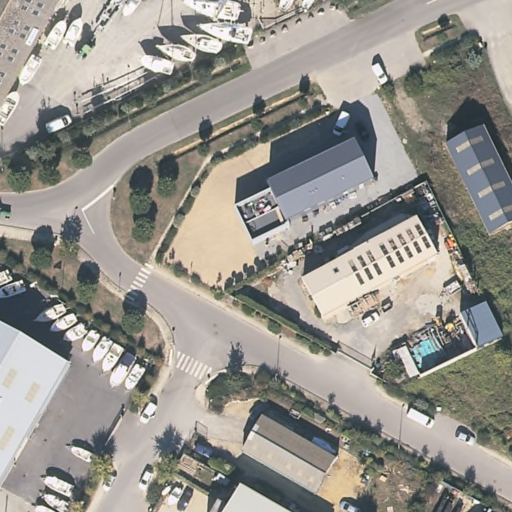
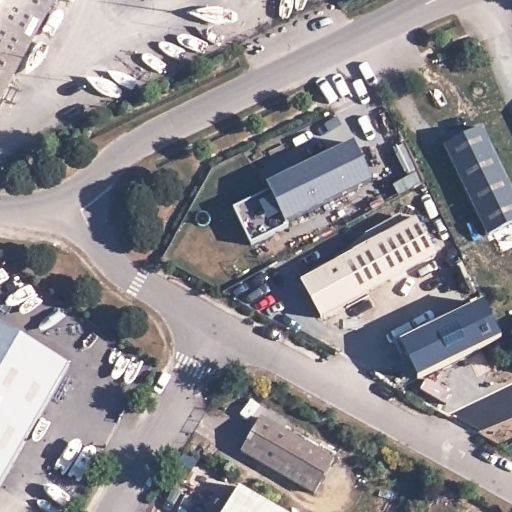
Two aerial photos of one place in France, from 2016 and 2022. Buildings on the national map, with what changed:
unchanged [(0,0),(54,0),(0,98),(0,0)]
unchanged [(480,126),(512,196),(512,222),(486,234),(444,143),(480,126)]
unchanged [(374,182),(287,223),(289,227),(252,244),(235,209),(272,193),(267,184),(353,143),(374,182)]
unchanged [(305,286),(418,225),(436,257),(323,319),(305,286)]
new [(486,300),(502,335),(422,374),(405,340),(486,300)]
unchanged [(0,491),(0,328),(67,369),(0,491)]
unchanged [(262,418),(333,458),(314,493),(242,452),(262,418)]
unchanged [(283,512),(211,512),(217,503),(226,508),(239,487),(283,512)]

